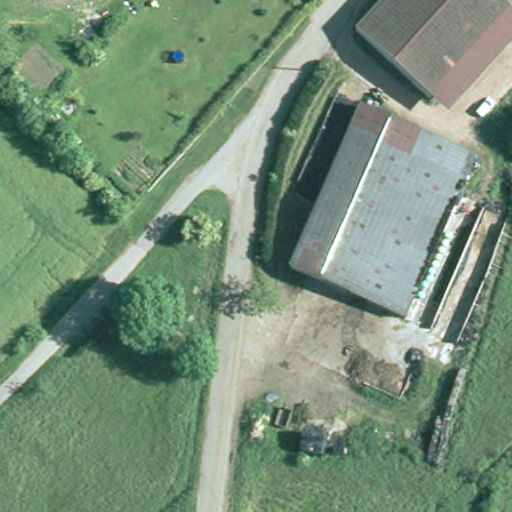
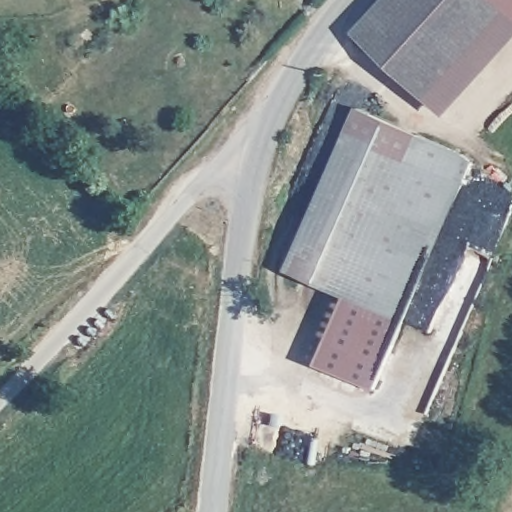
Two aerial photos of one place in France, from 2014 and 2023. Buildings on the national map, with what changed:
unchanged [(506,9),(432,90),(423,100),(348,30),(356,21),(375,0),(496,0),(506,9)]
unchanged [(512,26),(443,101),(435,110),(423,100),(432,90),(506,9),(512,14),(512,26)]
unchanged [(358,110),(458,154),(469,166),(398,321),(284,270),(358,110)]
new [(376,389),(319,365),(348,298),(398,321),(404,325),(376,389)]

